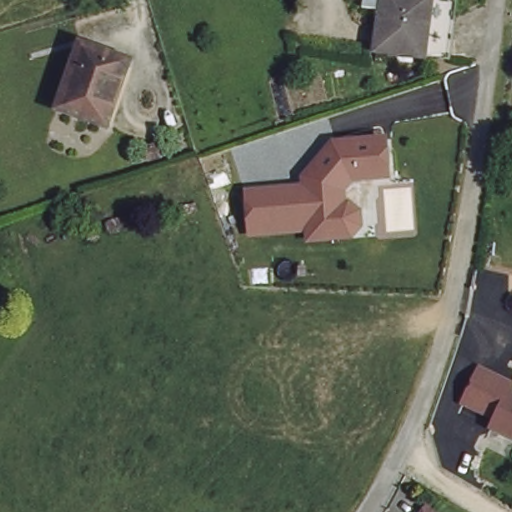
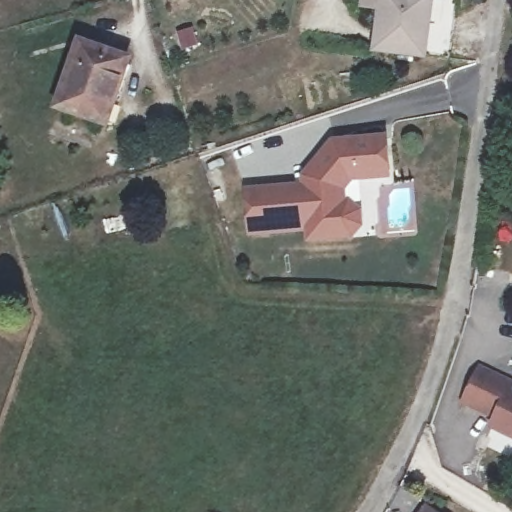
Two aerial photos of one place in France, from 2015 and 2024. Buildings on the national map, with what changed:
unchanged [(366,0),(441,0),(434,55),(360,45),(366,0)]
unchanged [(55,109),(76,45),(94,51),(123,61),(120,69),(102,124),(55,109)]
unchanged [(296,171),(309,155),(324,137),(375,131),(379,168),(349,171),(348,157),(335,159),(323,173),(333,181),(335,197),(341,196),(351,205),(353,219),(344,229),(302,234),(301,224),(243,230),(239,187),(297,181),(296,171)]
unchanged [(509,380),(506,386),(512,389),(512,434),(487,421),(491,412),(459,396),(476,362),(509,380)]
unchanged [(421,506),(430,512),(418,512),(421,506)]

